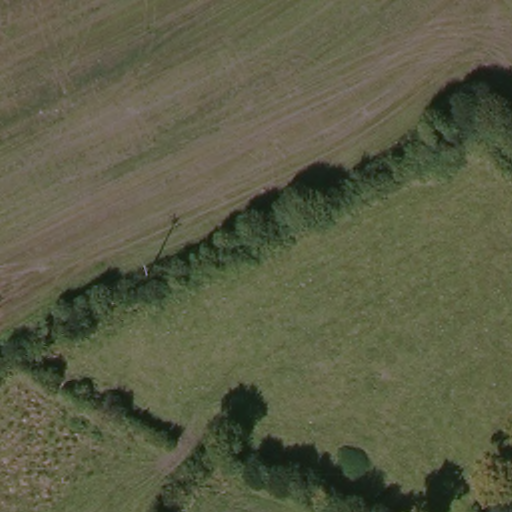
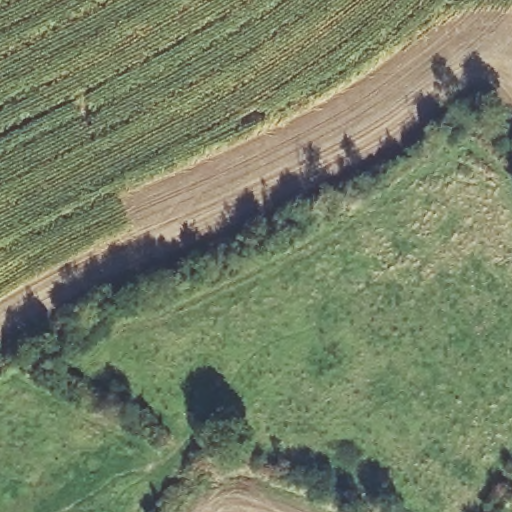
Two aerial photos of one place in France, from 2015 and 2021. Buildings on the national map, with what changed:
[]

